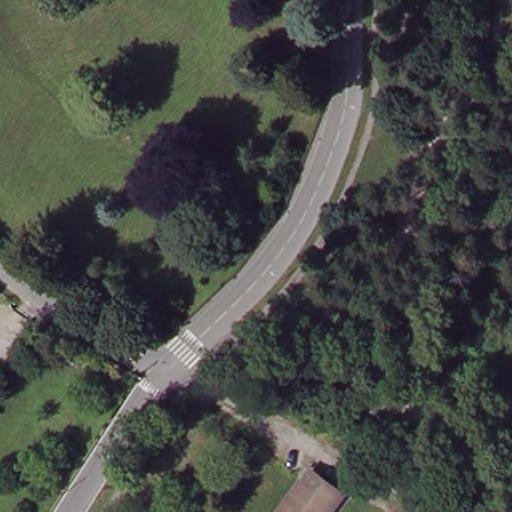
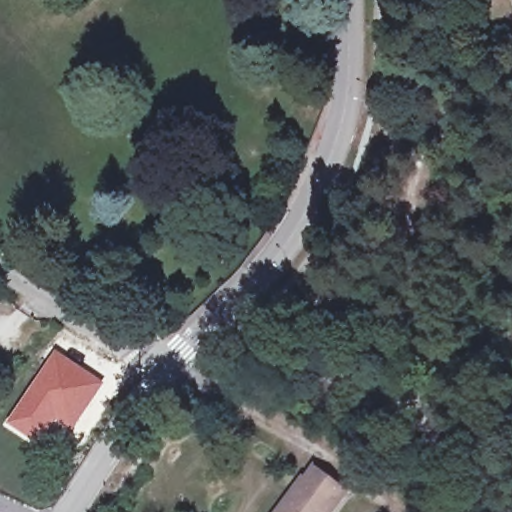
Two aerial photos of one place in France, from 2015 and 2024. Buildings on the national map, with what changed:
new [(55,350),(104,384),(52,456),(5,422),(55,350)]
unchanged [(300,486),(316,468),(347,493),(333,512),(270,512),(295,481),(300,486)]

